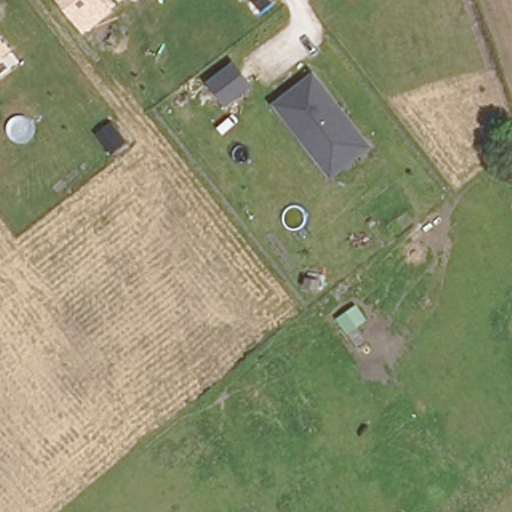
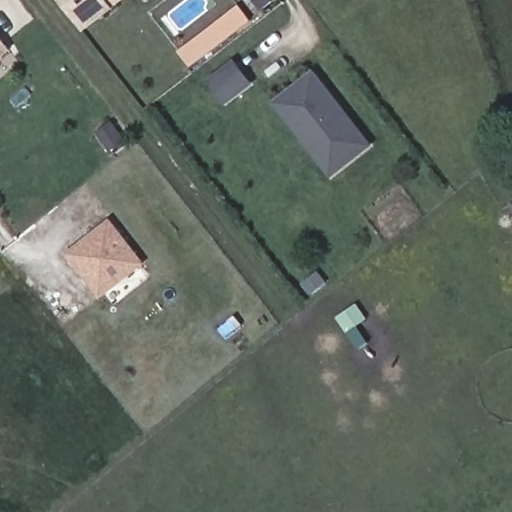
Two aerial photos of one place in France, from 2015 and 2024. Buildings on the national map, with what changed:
unchanged [(59,0),(107,0),(115,10),(83,33),(59,0)]
new [(191,69),(179,54),(233,11),(245,26),(191,69)]
unchanged [(0,54),(0,37),(9,48),(0,54)]
unchanged [(225,108),(206,81),(236,59),(256,85),(225,108)]
unchanged [(333,179),(274,102),(317,70),(374,145),(333,179)]
new [(64,255),(110,220),(146,266),(100,301),(64,255)]

